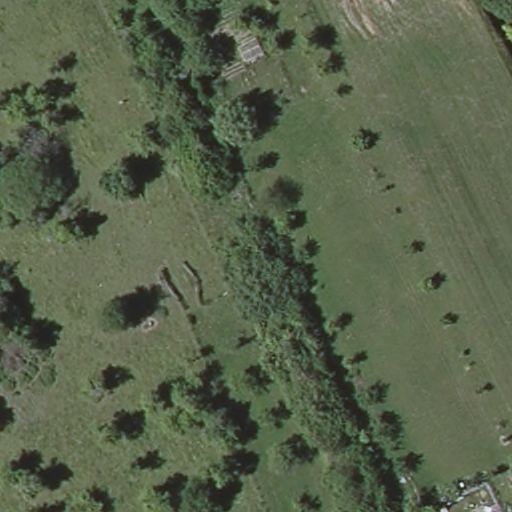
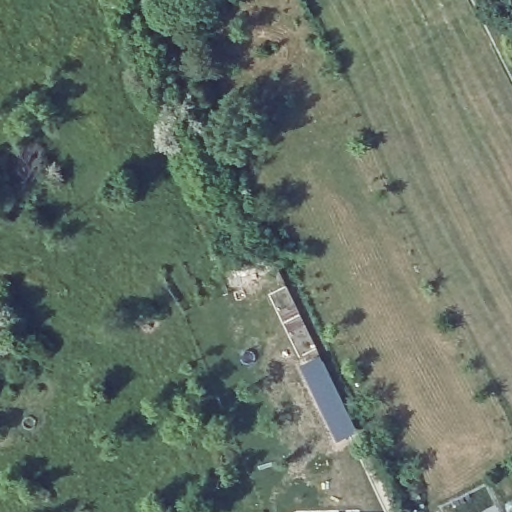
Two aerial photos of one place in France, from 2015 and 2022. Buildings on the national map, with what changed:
new [(321,358),(356,434),(336,443),(301,366),(321,358)]

